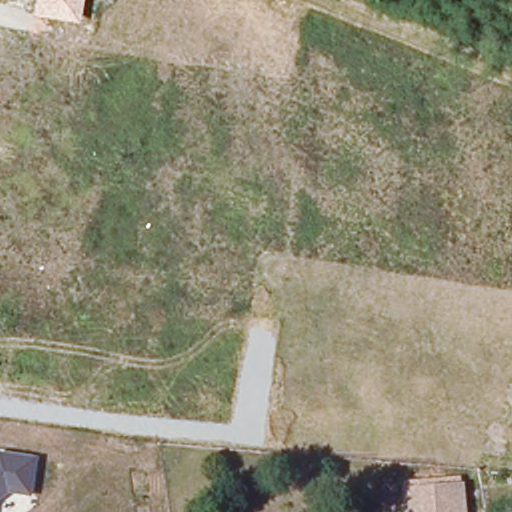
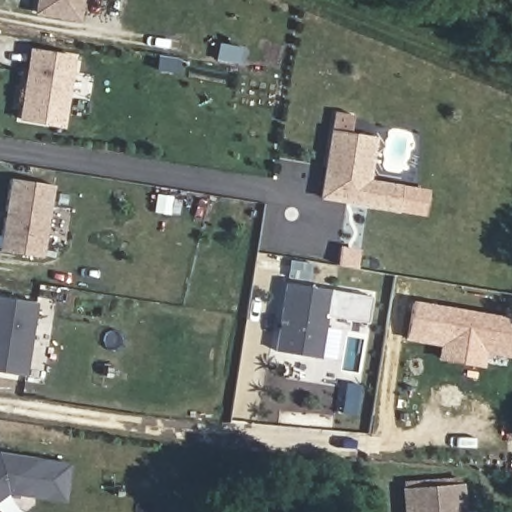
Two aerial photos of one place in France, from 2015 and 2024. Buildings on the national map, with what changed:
unchanged [(35,12),(37,0),(81,0),(78,19),(35,12)]
new [(18,121),(28,49),(75,55),(64,127),(18,121)]
new [(320,198),(331,130),(334,112),(352,114),(350,132),(377,137),(370,180),(401,185),(397,211),(320,198)]
new [(42,258),(0,252),(0,245),(9,178),(54,184),(42,258)]
new [(274,352),(286,283),(331,290),(320,358),(274,352)]
new [(25,377),(0,372),(0,296),(37,302),(25,377)]
new [(437,360),(440,346),(405,341),(412,300),(512,317),(512,355),(511,358),(486,355),(484,367),(437,360)]
unchanged [(35,495),(2,491),(0,492),(0,454),(4,451),(40,455),(35,495)]
unchanged [(458,485),(461,512),(407,512),(404,490),(458,485)]

